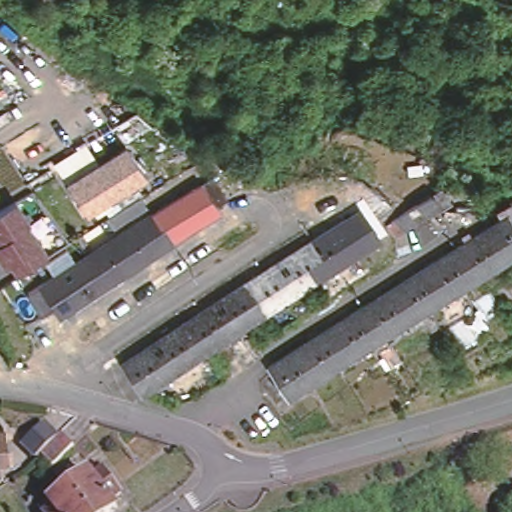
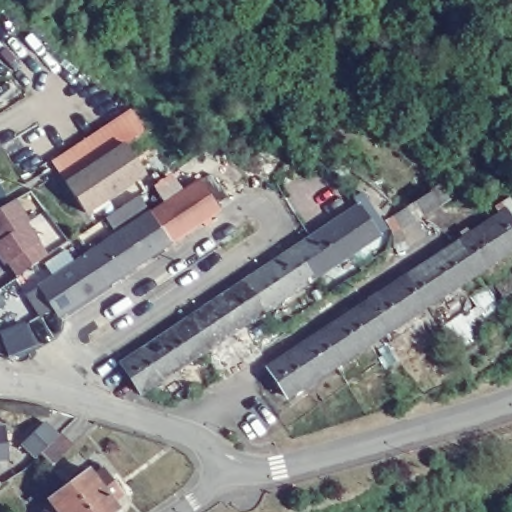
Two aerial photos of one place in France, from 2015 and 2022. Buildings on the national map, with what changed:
new [(138,105),(154,126),(129,145),(127,142),(65,181),(51,161),(138,105)]
unchanged [(144,169),(80,210),(63,183),(127,142),(144,169)]
unchanged [(205,214),(163,242),(144,212),(191,181),(204,172),(218,194),(206,203),(210,210),(205,214)]
unchanged [(306,250),(296,236),(346,203),(342,195),(349,191),(373,227),(364,233),(305,272),(295,257),(306,250)]
unchanged [(425,205),(380,229),(374,217),(417,191),(425,205)]
unchanged [(133,193),(139,205),(106,227),(99,216),(133,193)]
unchanged [(286,385),(269,358),(266,354),(507,199),(512,209),(512,212),(439,286),(286,385)]
unchanged [(16,201),(47,256),(16,274),(8,262),(2,264),(0,261),(0,210),(16,201)]
unchanged [(114,274),(104,259),(90,269),(81,255),(144,212),(163,242),(114,274)]
unchanged [(512,212),(512,236),(439,286),(512,212)]
unchanged [(195,346),(176,316),(296,236),(306,250),(295,257),(305,272),(199,343),(195,346)]
unchanged [(81,255),(90,269),(104,259),(114,274),(51,316),(49,313),(38,321),(34,317),(21,296),(33,288),(81,255)]
unchanged [(176,316),(195,346),(131,388),(111,359),(176,316)]
unchanged [(236,354),(231,346),(245,337),(259,357),(228,378),(222,368),(220,365),(236,354)]
unchanged [(71,448),(51,467),(40,457),(39,455),(33,460),(21,447),(44,425),(58,439),(60,437),(71,448)]
unchanged [(3,427),(6,458),(0,458),(0,427),(3,427)]
unchanged [(87,473),(95,467),(99,471),(100,471),(118,496),(108,503),(115,512),(86,512),(68,487),(87,473)]
unchanged [(48,501),(65,489),(68,487),(86,512),(39,512),(37,509),(48,501)]

